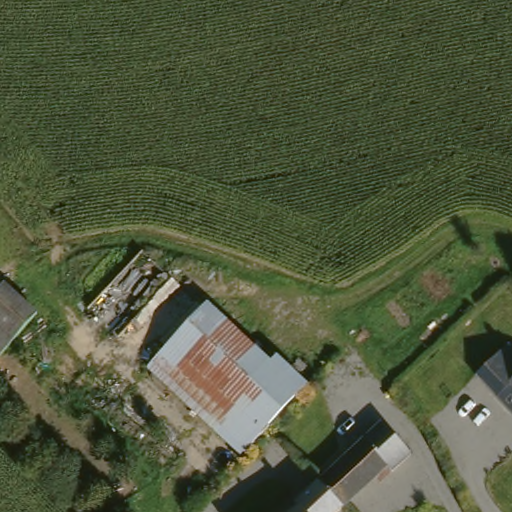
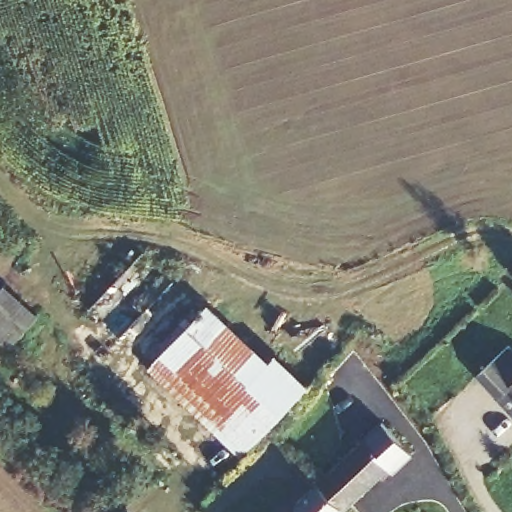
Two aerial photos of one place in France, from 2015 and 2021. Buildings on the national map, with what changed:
unchanged [(1,358),(0,357),(0,286),(1,285),(40,315),(1,358)]
unchanged [(142,367),(216,295),(315,387),(238,458),(142,367)]
unchanged [(473,380),(474,379),(499,355),(512,369),(512,411),(507,416),(473,380)]
unchanged [(404,446),(409,451),(380,477),(339,512),(286,512),(318,491),(316,489),(315,487),(384,426),(404,446)]

